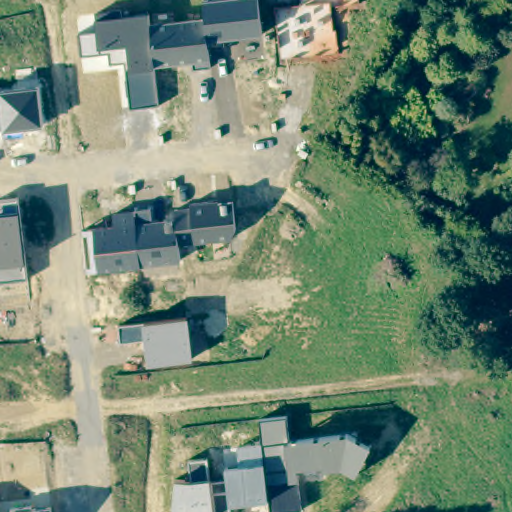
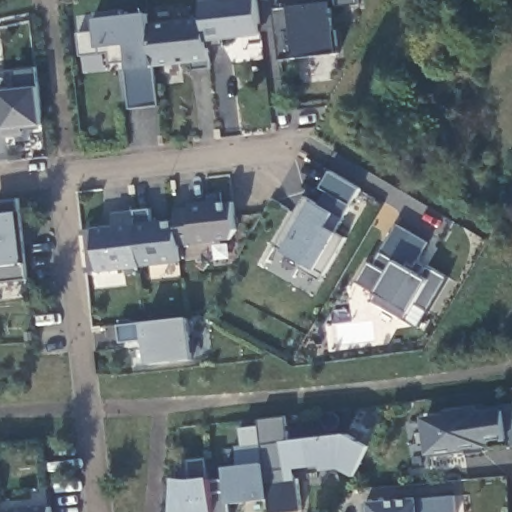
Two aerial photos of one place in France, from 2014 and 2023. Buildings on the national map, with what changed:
unchanged [(96,32),(94,15),(121,12),(122,16),(148,13),(150,24),(205,17),(203,1),(217,0),(257,0),(261,35),(224,39),(224,46),(209,48),(210,68),(194,71),(193,61),(153,67),(158,105),(129,109),(124,63),(109,64),(107,53),(80,54),(78,34),(96,32)]
unchanged [(299,6),(299,0),(358,0),(359,5),(332,8),(337,54),(298,58),(280,59),(274,8),(292,7),(299,6)]
unchanged [(0,90),(1,89),(40,84),(45,127),(5,132),(0,133),(0,90)]
new [(306,264),(284,251),(277,246),(308,195),(315,201),(323,206),(331,192),(324,187),(333,172),(361,189),(339,232),(347,236),(322,281),(301,269),(306,264)]
unchanged [(0,202),(19,199),(20,211),(26,263),(27,279),(0,282),(0,202)]
unchanged [(141,265),(134,214),(149,213),(150,224),(175,221),(174,211),(189,209),(189,206),(232,201),(235,230),(229,240),(179,245),(180,262),(141,265)]
unchanged [(141,265),(100,270),(94,229),(116,226),(115,216),(134,214),(141,265)]
new [(376,291),(359,281),(371,262),(377,265),(399,226),(429,242),(420,259),(449,278),(430,310),(418,302),(412,313),(409,320),(374,300),(376,291)]
unchanged [(145,322),(188,317),(193,360),(149,364),(146,340),(121,342),(119,325),(145,322)]
new [(506,407),(509,446),(428,455),(422,417),(506,407)]
unchanged [(174,477),(190,478),(188,460),(207,458),(209,473),(225,471),(224,466),(238,464),(235,447),(263,444),(259,421),(284,418),(288,439),(348,433),(371,446),(354,475),(340,467),(324,470),(323,465),(297,469),(299,509),(276,512),(269,512),(267,498),(229,503),(230,512),(172,512),(174,477)]
new [(367,501),(418,498),(454,494),(456,512),(368,512),(367,501)]
unchanged [(11,511),(49,507),(50,512),(12,512),(11,511)]

